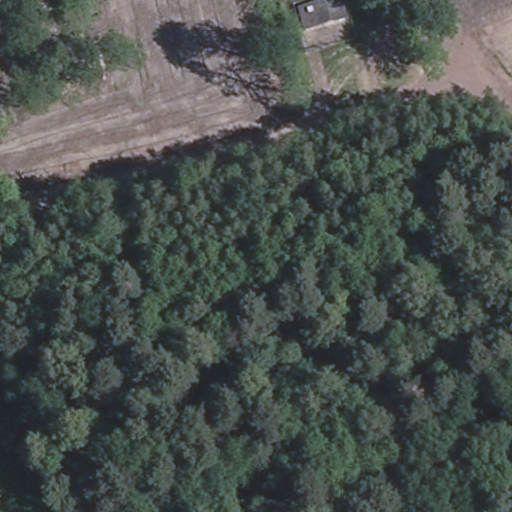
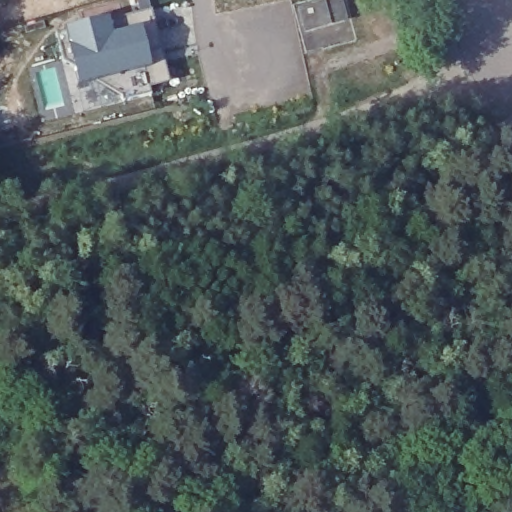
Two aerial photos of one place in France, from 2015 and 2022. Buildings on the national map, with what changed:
unchanged [(304,11),(325,6),(342,1),(347,22),(330,27),(310,33),(304,11)]
new [(170,83),(150,87),(151,94),(123,101),(122,96),(99,80),(77,86),(65,29),(62,21),(107,13),(108,19),(155,9),(170,83)]
unchanged [(417,81),(415,76),(420,75),(422,80),(417,81)]

